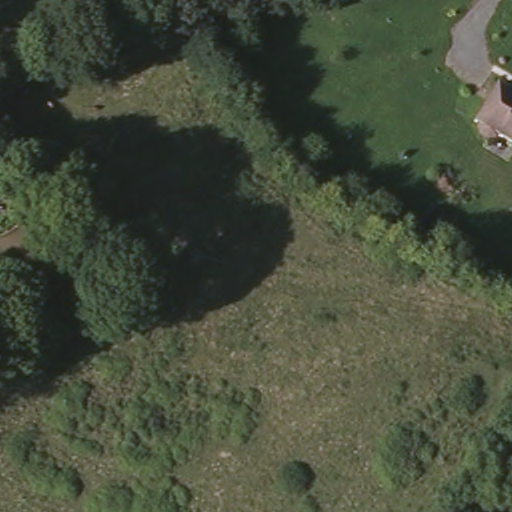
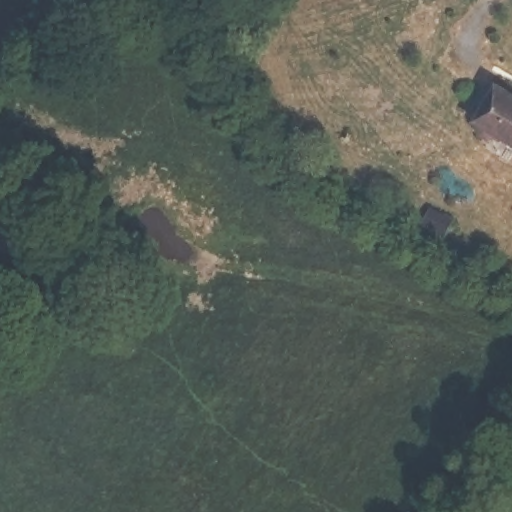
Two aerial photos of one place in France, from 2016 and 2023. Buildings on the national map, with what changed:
unchanged [(512,149),(471,128),(490,85),(512,96),(512,149)]

